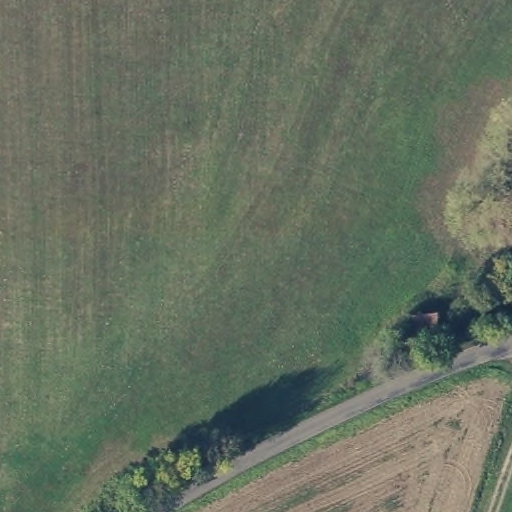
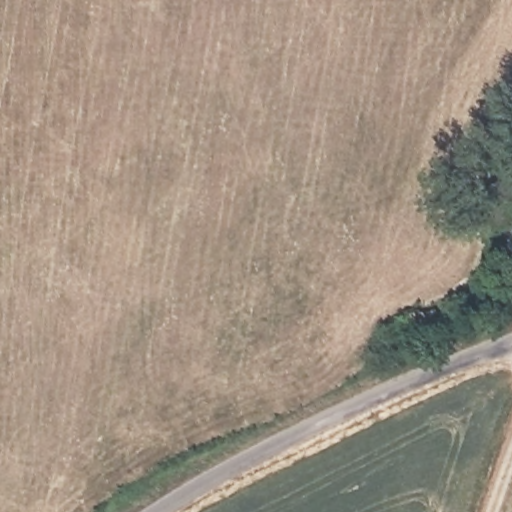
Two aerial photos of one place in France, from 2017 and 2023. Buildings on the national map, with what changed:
unchanged [(474,315),(473,333),(405,337),(406,317),(474,315)]
unchanged [(393,332),(389,348),(371,344),(376,326),(393,332)]

